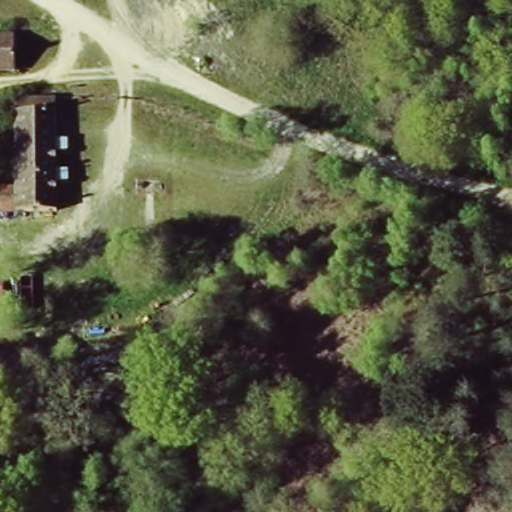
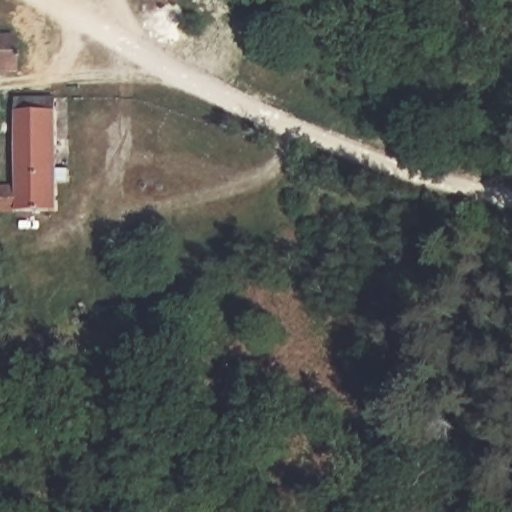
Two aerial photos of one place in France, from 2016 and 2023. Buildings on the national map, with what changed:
unchanged [(0,71),(0,25),(12,25),(14,70),(0,71)]
unchanged [(12,175),(13,103),(57,101),(64,210),(0,215),(0,176),(12,175)]

